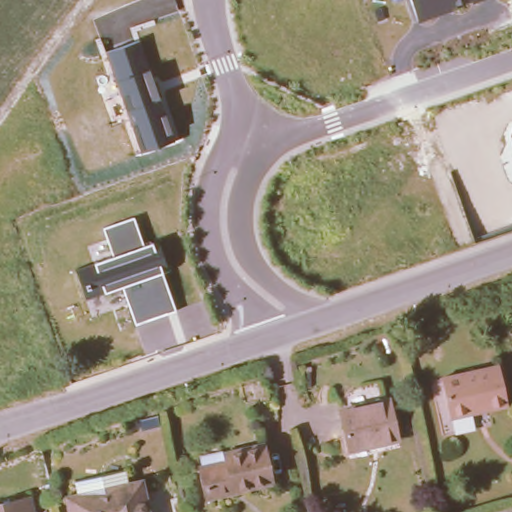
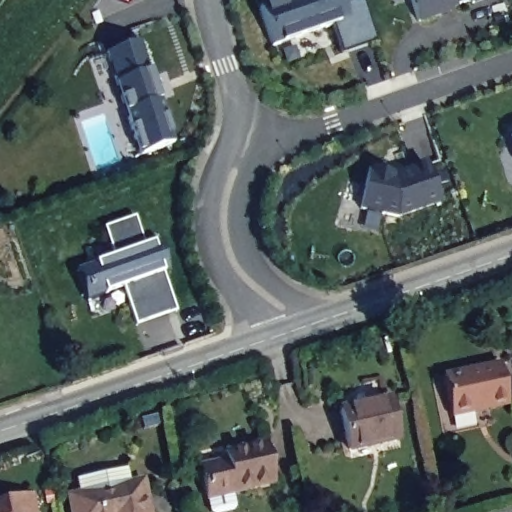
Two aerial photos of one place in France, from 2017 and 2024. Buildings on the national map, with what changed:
new [(339,55),(330,27),(270,47),(256,8),(282,0),(339,0),(341,6),(360,0),(361,0),(375,43),(339,55)]
unchanged [(419,22),(412,0),(483,0),(419,22)]
unchanged [(140,41),(177,142),(141,153),(105,52),(140,41)]
unchanged [(512,134),(512,137),(511,135),(512,134)]
new [(362,173),(393,180),(407,175),(409,172),(423,167),(436,205),(392,220),(355,212),(362,173)]
unchanged [(143,245),(151,242),(159,241),(167,267),(161,268),(162,272),(175,310),(136,324),(123,286),(105,291),(85,298),(76,272),(95,264),(113,257),(105,228),(133,217),(143,245)]
unchanged [(436,374),(494,362),(502,403),(445,415),(436,374)]
unchanged [(330,405),(389,392),(397,432),(340,445),(330,405)]
unchanged [(205,465),(230,459),(228,451),(267,442),(275,482),(212,496),(205,465)]
unchanged [(142,472),(149,512),(75,512),(70,486),(142,472)]
unchanged [(23,496),(27,512),(0,512),(0,501),(23,496)]

